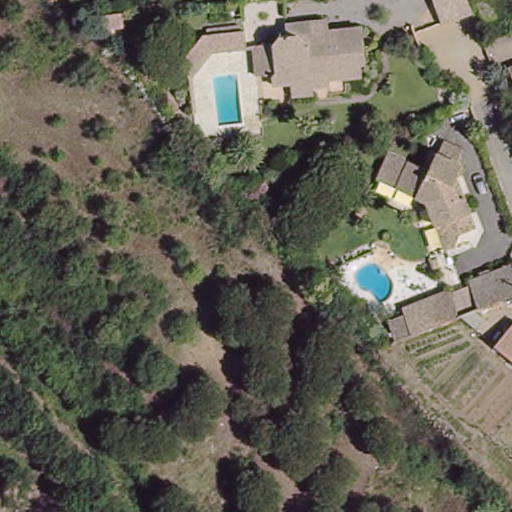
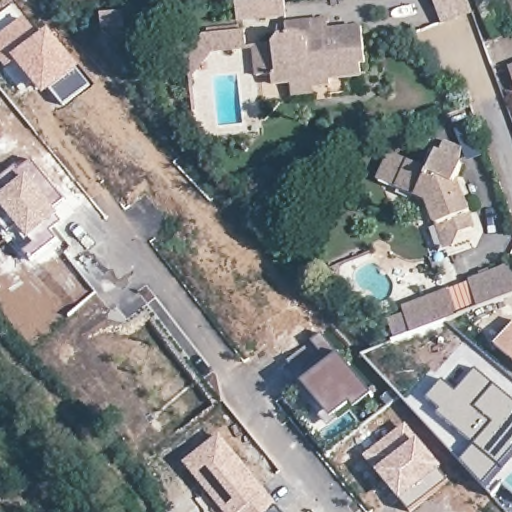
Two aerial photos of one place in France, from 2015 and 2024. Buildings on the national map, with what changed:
unchanged [(448,28),(438,0),(471,0),(478,17),(448,28)]
new [(21,17),(23,15),(39,34),(48,27),(79,67),(50,91),(43,97),(16,64),(6,71),(0,63),(0,33),(21,17)]
unchanged [(277,84),(274,38),(291,38),(291,25),(310,23),(327,21),(329,33),(368,29),(371,59),(360,60),(363,79),(336,80),(336,89),(312,89),(312,84),(277,84)]
unchanged [(203,36),(247,28),(248,47),(218,51),(197,78),(182,68),(203,36)]
unchanged [(512,67),(512,77),(509,68),(512,67)]
unchanged [(443,222),(432,220),(424,194),(419,199),(392,188),(405,158),(429,168),(434,156),(456,165),(461,167),(453,185),(473,234),(451,242),(443,222)]
new [(31,159),(66,200),(56,210),(64,220),(52,230),(61,244),(55,250),(53,247),(31,264),(9,244),(0,233),(0,177),(31,159)]
unchanged [(483,307),(471,279),(512,263),(512,296),(483,307)]
unchanged [(390,318),(407,312),(404,306),(454,289),(463,315),(397,340),(390,318)]
unchanged [(498,348),(512,331),(512,361),(498,348)]
new [(304,380),(338,352),(373,395),(350,414),(347,410),(331,423),(300,383),(304,380)]
new [(477,371),(512,400),(512,493),(503,485),(493,497),(488,490),(463,462),(475,447),(440,415),(443,412),(428,400),(444,382),(458,393),(477,371)]
new [(404,424),(443,469),(440,472),(403,503),(363,457),(404,424)]
new [(277,505),(268,512),(222,512),(183,464),(220,435),(277,505)]
new [(282,512),(268,512),(277,505),(282,512)]

